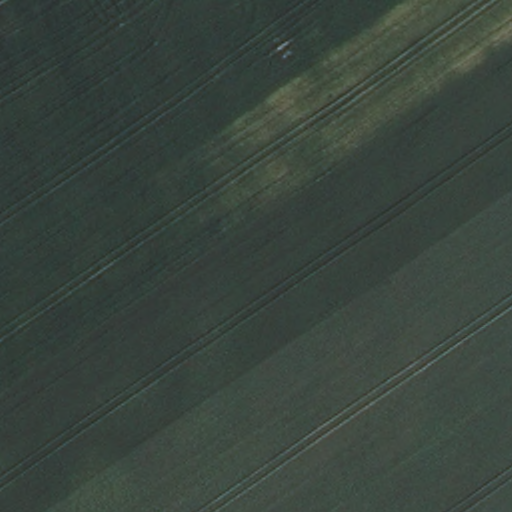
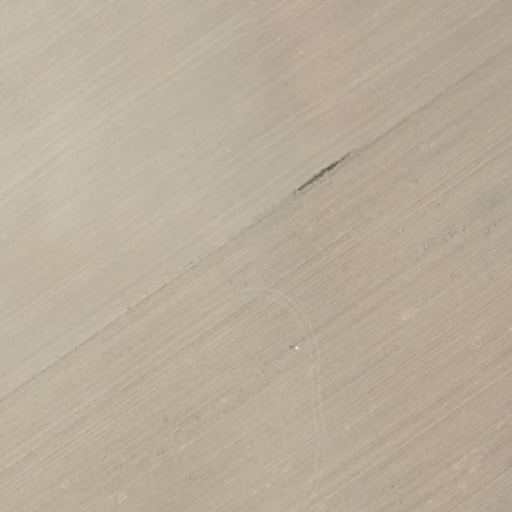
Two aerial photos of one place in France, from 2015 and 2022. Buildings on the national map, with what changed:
[]

